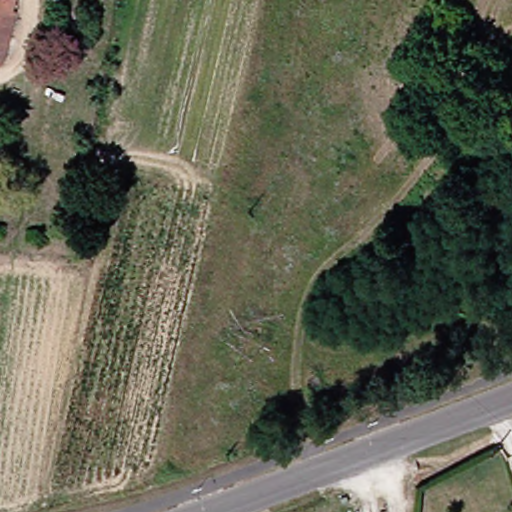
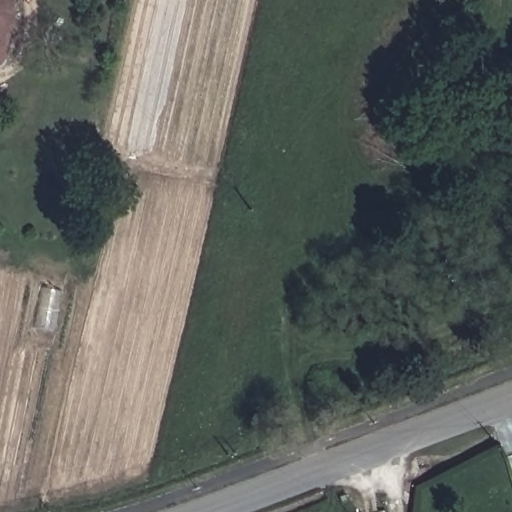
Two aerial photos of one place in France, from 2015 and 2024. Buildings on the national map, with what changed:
unchanged [(10,12),(0,46),(0,0),(10,0),(7,11),(10,12)]
unchanged [(343,506),(334,511),(330,503),(339,499),(343,506)]

